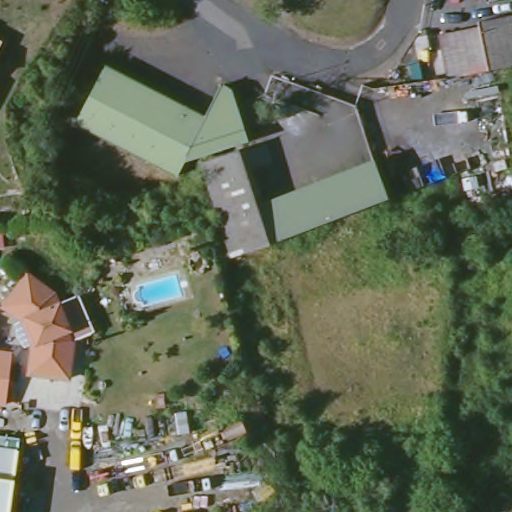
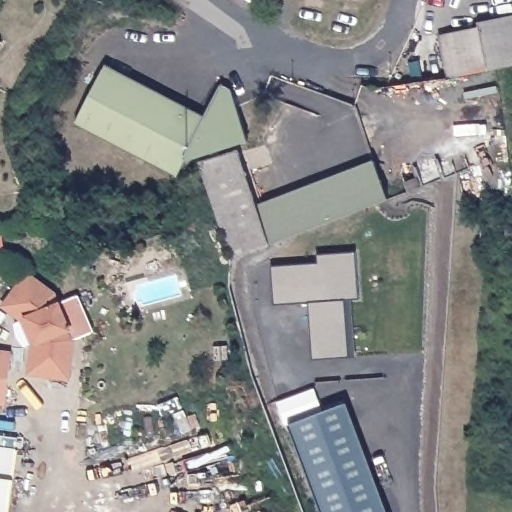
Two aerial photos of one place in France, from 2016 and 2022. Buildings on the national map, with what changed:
unchanged [(443,79),(436,36),(474,30),(474,26),(512,21),(512,68),(443,79)]
unchanged [(0,44),(0,37),(3,38),(0,44)]
unchanged [(201,123),(181,156),(168,175),(74,114),(108,61),(201,123)]
unchanged [(243,146),(211,154),(188,160),(181,156),(201,123),(223,89),(233,94),(236,106),(243,146)]
unchanged [(218,219),(214,203),(201,162),(234,152),(246,192),(249,207),(373,159),(388,201),(261,246),(228,259),(218,219)]
new [(335,357),(311,359),(306,302),(271,304),(269,264),(316,261),(315,253),(354,250),(358,298),(344,299),(346,333),(348,356),(335,357)]
unchanged [(32,372),(34,340),(41,338),(32,312),(25,316),(3,301),(25,269),(54,287),(78,335),(74,366),(73,378),(55,376),(32,372)]
unchanged [(0,352),(9,353),(4,401),(0,400),(0,352)]
new [(344,408),(384,512),(316,512),(285,430),(344,408)]
unchanged [(0,445),(14,448),(5,512),(0,512),(0,445)]

